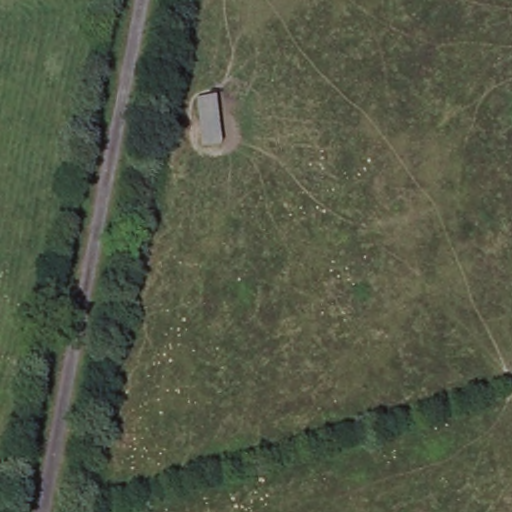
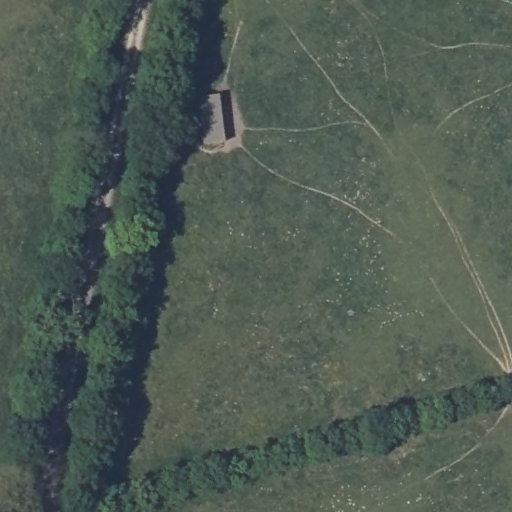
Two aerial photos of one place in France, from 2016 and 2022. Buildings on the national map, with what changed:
unchanged [(200,147),(195,99),(217,95),(222,144),(200,147)]

